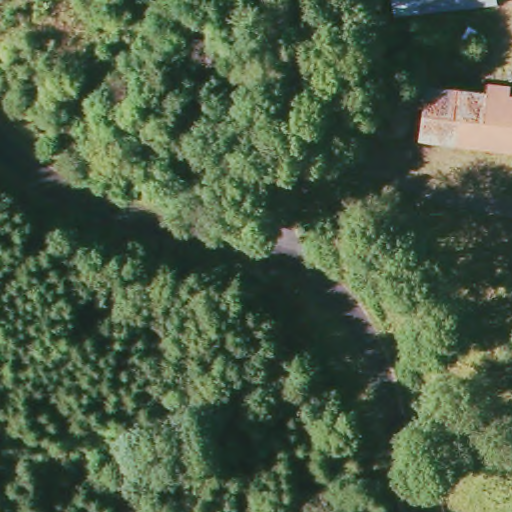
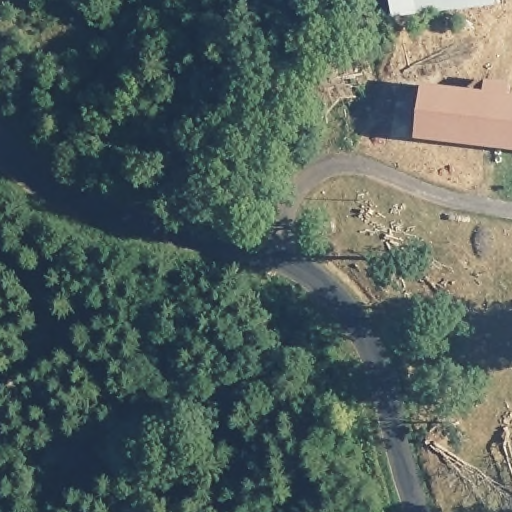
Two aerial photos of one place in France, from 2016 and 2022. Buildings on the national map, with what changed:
unchanged [(394,18),(392,0),(492,0),(492,10),(394,18)]
unchanged [(423,86),(512,96),(512,150),(420,139),(423,86)]

